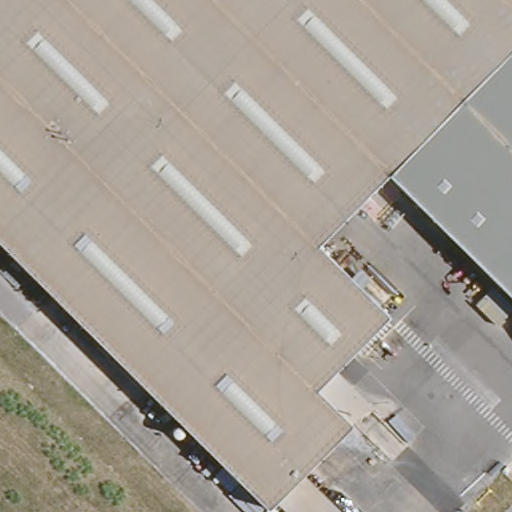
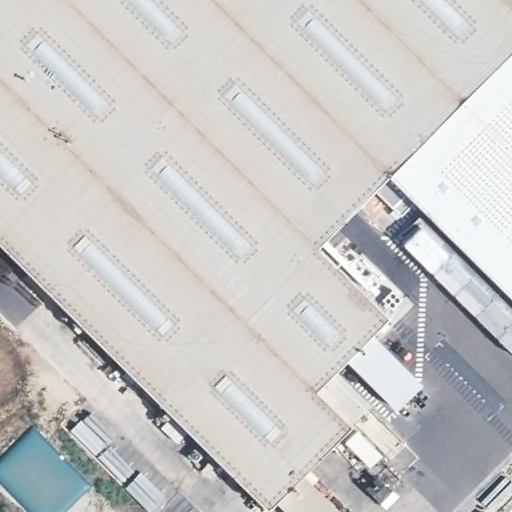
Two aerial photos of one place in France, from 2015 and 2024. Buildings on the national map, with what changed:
unchanged [(388,173),(313,247),(384,314),(311,388),(343,424),(297,471),(337,512),(285,512),(271,498),(263,506),(0,245),(0,0),(512,0),(512,298),(388,173)]
new [(343,356),(369,329),(421,381),(394,408),(343,356)]

